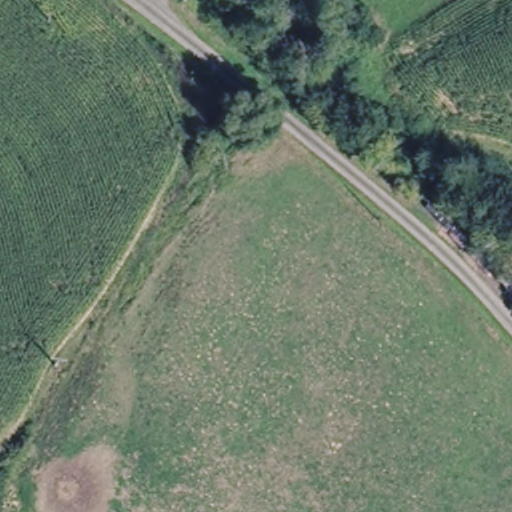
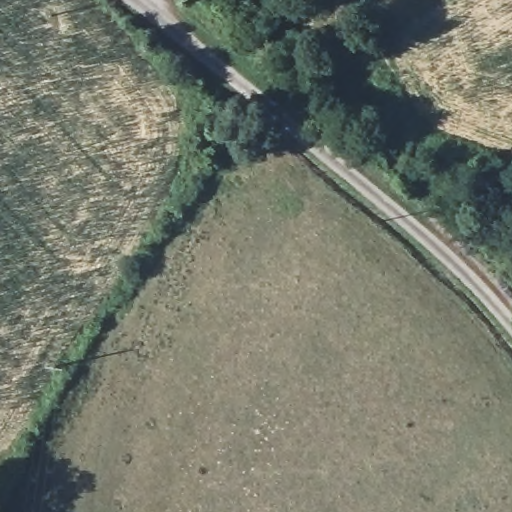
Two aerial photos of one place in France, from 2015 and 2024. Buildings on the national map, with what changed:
[]

